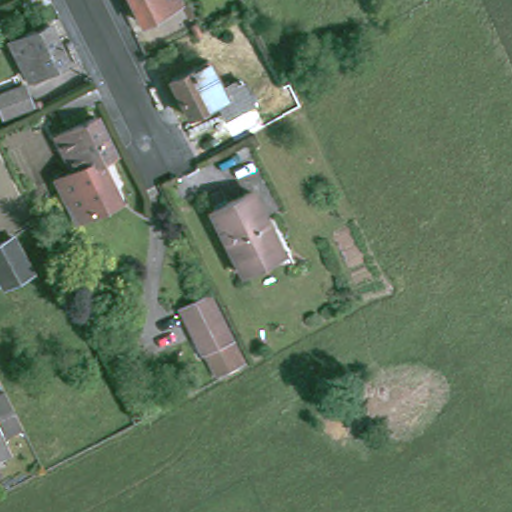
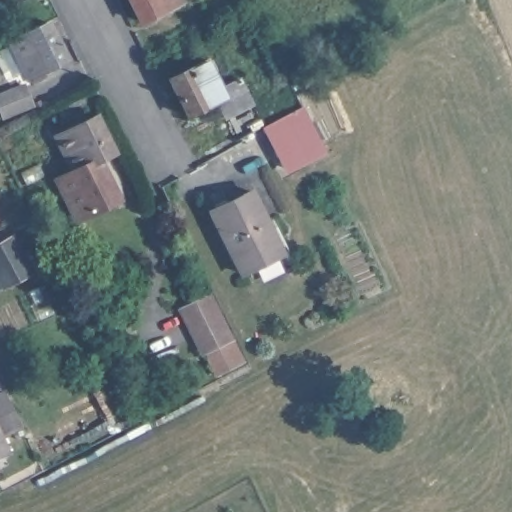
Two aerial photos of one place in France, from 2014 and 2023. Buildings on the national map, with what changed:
unchanged [(131,0),(178,0),(180,2),(142,21),(131,0)]
unchanged [(37,74),(34,67),(15,30),(53,12),(72,49),(48,60),(52,66),(37,74)]
unchanged [(197,37),(193,31),(190,25),(196,23),(199,29),(202,35),(197,37)]
unchanged [(170,84),(208,65),(222,93),(240,84),(252,109),(225,122),(217,106),(188,120),(170,84)]
unchanged [(29,75),(37,95),(8,105),(1,87),(29,75)]
unchanged [(100,99),(75,112),(67,99),(93,85),(100,99)]
unchanged [(40,92),(45,90),(47,96),(42,99),(40,92)]
new [(326,151),(286,174),(262,129),(302,107),(326,151)]
unchanged [(95,115),(113,153),(98,160),(118,200),(79,219),(59,180),(75,171),(57,135),(95,115)]
unchanged [(212,211),(252,191),(270,230),(266,232),(278,255),(242,273),(212,211)]
unchanged [(5,287),(0,279),(0,243),(12,236),(32,272),(5,287)]
unchanged [(209,295),(230,338),(228,340),(240,362),(216,375),(204,351),(203,351),(182,309),(209,295)]
unchanged [(21,427),(3,436),(10,450),(0,455),(0,394),(4,392),(5,391),(22,426),(21,427)]

